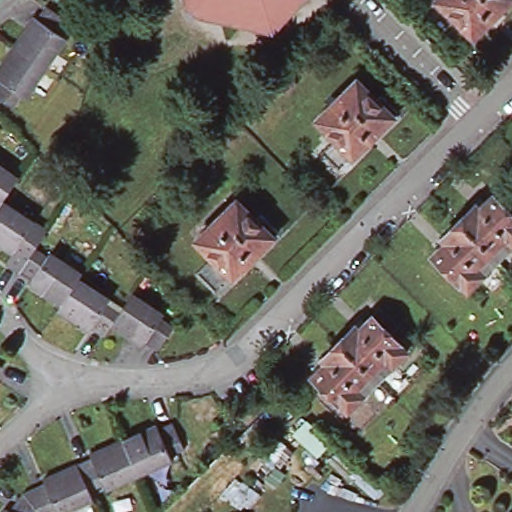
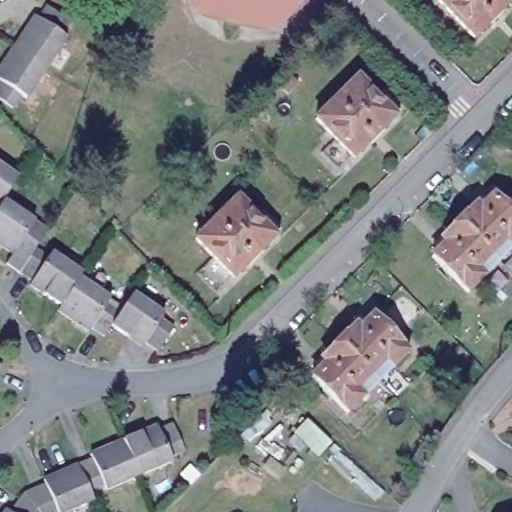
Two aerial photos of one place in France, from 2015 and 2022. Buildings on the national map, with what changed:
unchanged [(275,5),(257,9),(242,25),(221,21),(215,0),(304,0),(295,10),(275,5)]
unchanged [(437,0),(510,0),(474,36),(437,0)]
unchanged [(38,16),(47,4),(71,20),(62,33),(67,36),(47,66),(13,44),(35,14),(38,16)]
unchanged [(13,44),(47,66),(26,97),(21,94),(12,108),(0,99),(0,64),(13,44)]
unchanged [(378,98),(382,94),(399,111),(354,156),(317,120),(358,79),(378,98)]
unchanged [(20,177),(5,200),(0,206),(0,163),(20,177)]
unchanged [(478,210),(492,196),(512,215),(512,246),(497,261),(458,221),(473,206),(478,210)]
unchanged [(258,219),(262,214),(279,230),(233,277),(196,240),(238,199),(258,219)]
unchanged [(81,279),(62,306),(31,285),(33,281),(20,272),(7,264),(14,253),(0,243),(0,206),(5,200),(36,221),(50,230),(36,248),(50,257),(53,252),(85,273),(81,279)]
unchanged [(446,242),(441,238),(458,221),(497,261),(467,291),(432,255),(446,242)]
unchanged [(146,342),(144,346),(112,325),(105,336),(92,328),(89,332),(59,311),(62,306),(81,279),(111,300),(108,304),(120,312),(135,292),(166,313),(162,319),(175,328),(160,350),(146,342)]
unchanged [(355,325),(358,329),(373,314),(408,349),(377,380),(338,341),(355,325)]
unchanged [(322,357),(338,341),(377,380),(347,410),(312,375),(326,361),(322,357)]
unchanged [(2,366),(0,369),(0,365),(2,366)]
unchanged [(155,435),(168,428),(180,455),(166,461),(168,467),(134,482),(118,446),(152,431),(155,435)]
unchanged [(22,499),(41,491),(40,486),(73,471),(88,464),(86,460),(118,446),(134,482),(103,496),(100,490),(85,497),(90,506),(76,512),(12,512),(22,499)]

